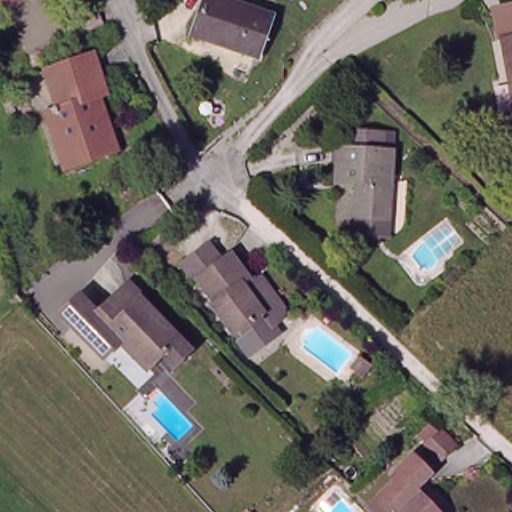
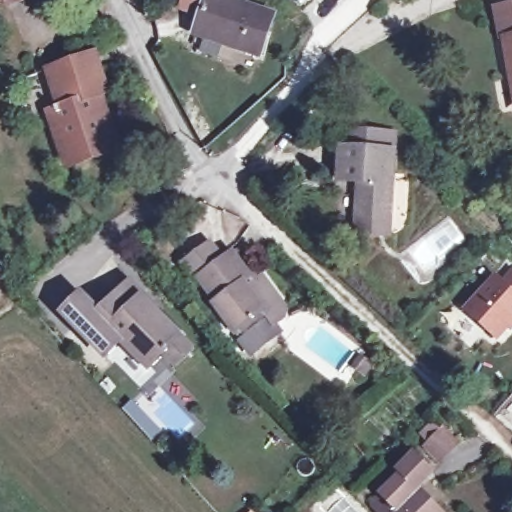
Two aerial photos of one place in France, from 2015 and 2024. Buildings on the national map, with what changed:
unchanged [(15,0),(0,7),(0,0),(15,0)]
unchanged [(194,36),(206,0),(223,0),(273,16),(261,57),(194,36)]
new [(294,0),(305,0),(299,5),(294,0)]
unchanged [(508,78),(501,40),(512,38),(512,90),(510,78),(508,78)]
unchanged [(99,50),(113,88),(106,92),(125,145),(74,163),(55,108),(66,104),(53,66),(99,50)]
unchanged [(356,230),(358,212),(359,177),(338,175),(341,142),(354,144),(356,126),(384,128),(384,145),(395,146),(390,214),(389,233),(356,230)]
unchanged [(246,281),(256,275),(280,305),(279,319),(268,325),(258,312),(228,334),(206,305),(207,302),(190,278),(178,262),(202,245),(213,261),(225,253),(246,281)]
new [(503,285),(512,275),(512,323),(498,339),(467,311),(496,279),(503,285)]
unchanged [(179,360),(166,347),(152,361),(126,334),(108,351),(66,308),(83,291),(100,310),(131,280),(181,331),(194,345),(179,360)]
unchanged [(364,357),(377,366),(368,377),(356,368),(364,357)]
unchanged [(444,428),(460,444),(442,462),(426,446),(444,428)]
unchanged [(369,504),(399,474),(396,470),(412,455),(430,472),(415,489),(438,512),(376,512),(369,504)]

